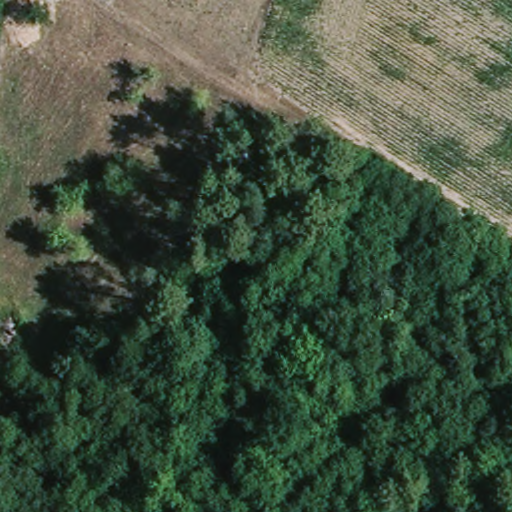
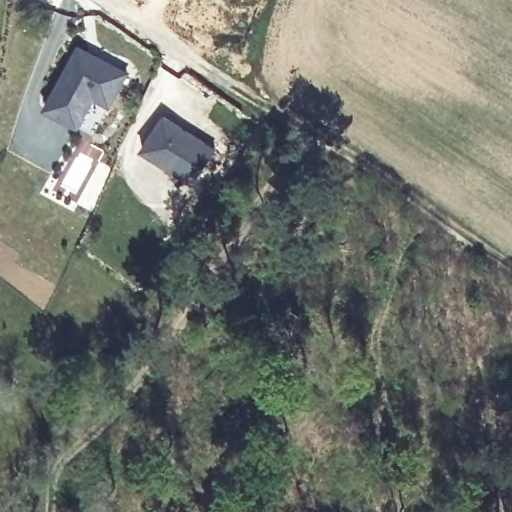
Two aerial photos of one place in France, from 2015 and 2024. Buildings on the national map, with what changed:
new [(77,129),(45,111),(78,50),(126,75),(108,109),(93,138),(77,129)]
new [(162,119),(214,151),(192,185),(141,152),(162,119)]

